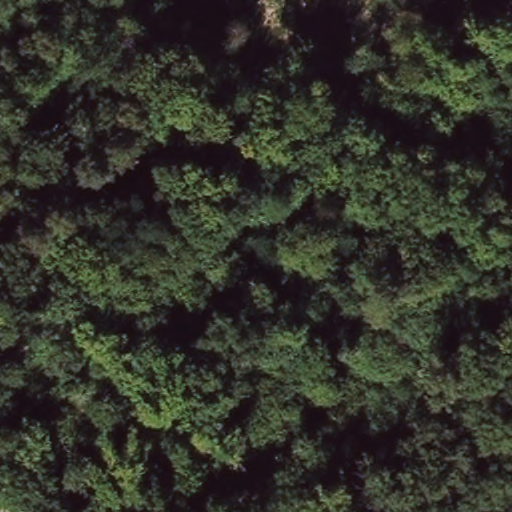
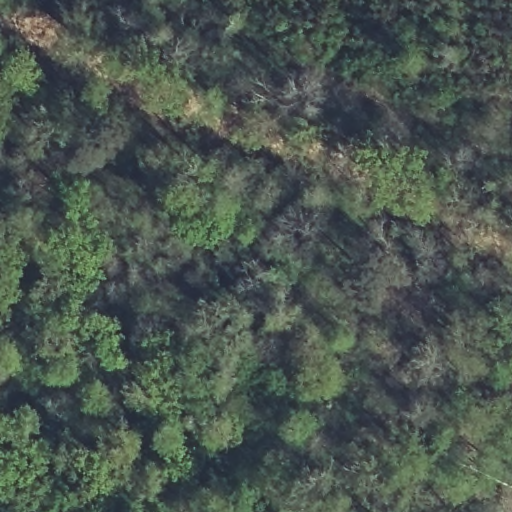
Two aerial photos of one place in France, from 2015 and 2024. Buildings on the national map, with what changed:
[]

